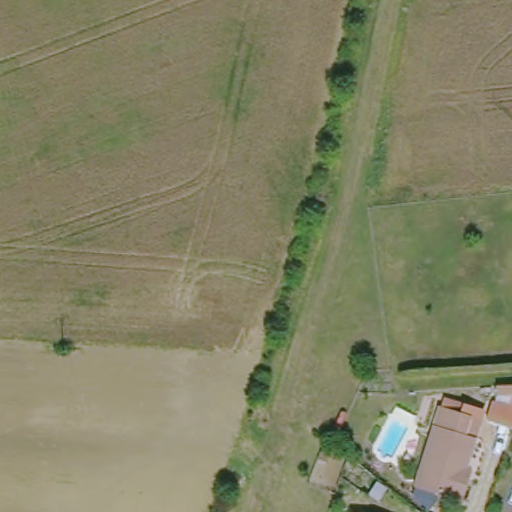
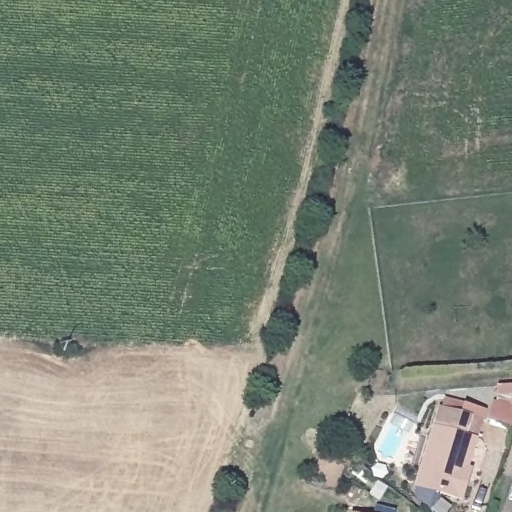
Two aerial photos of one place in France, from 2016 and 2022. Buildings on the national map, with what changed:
unchanged [(473,477),(467,497),(423,485),(441,420),(444,410),(461,415),(480,420),(477,430),(481,431),(471,467),(476,470),(473,477)]

